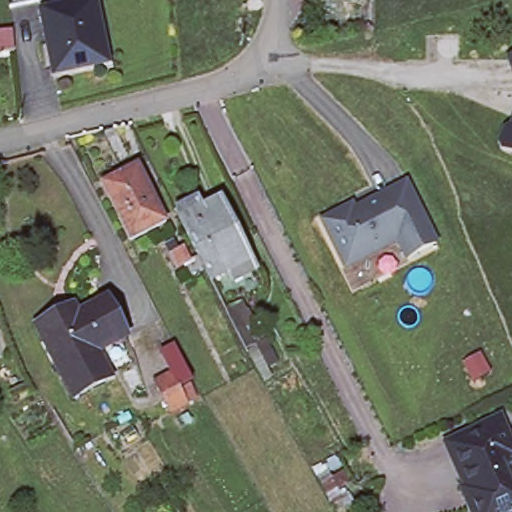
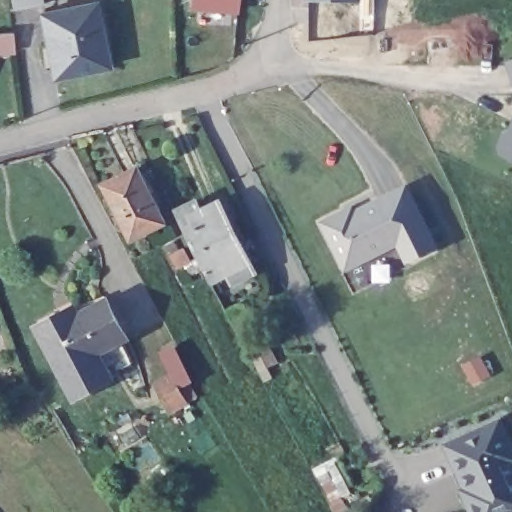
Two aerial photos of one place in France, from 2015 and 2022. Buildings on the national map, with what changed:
unchanged [(50,2),(24,6),(22,7),(21,0),(50,0),(50,2)]
unchanged [(96,79),(52,86),(38,8),(79,0),(93,0),(100,41),(106,77),(96,79)]
new [(236,13),(190,9),(190,0),(237,0),(236,13)]
unchanged [(512,63),(512,83),(505,66),(512,63)]
unchanged [(497,152),(512,117),(512,159),(497,152)]
unchanged [(165,223),(130,240),(103,184),(138,166),(165,223)]
unchanged [(439,247),(410,262),(399,241),(346,269),(322,223),(344,213),(353,208),(355,213),(407,186),(439,247)]
unchanged [(207,215),(227,206),(260,275),(240,285),(235,276),(217,285),(182,216),(202,206),(207,215)]
unchanged [(109,304),(129,342),(104,355),(85,317),(109,304)]
unchanged [(104,355),(100,357),(115,383),(77,404),(39,332),(62,320),(75,313),(79,320),(85,317),(104,355)]
unchanged [(160,353),(173,345),(200,398),(172,411),(160,385),(175,377),(160,353)]
unchanged [(473,512),(472,509),(476,507),(447,448),(503,422),(512,440),(512,512),(473,512)]

